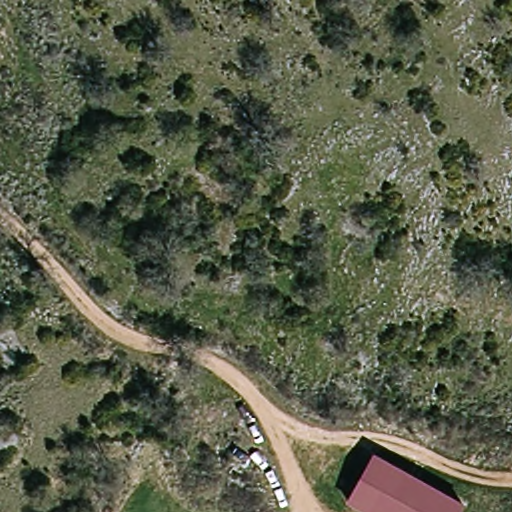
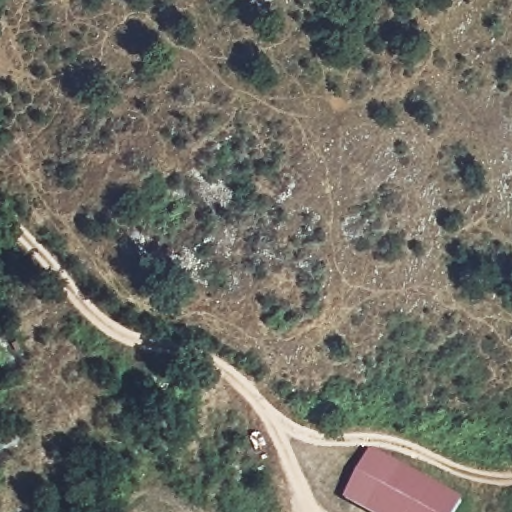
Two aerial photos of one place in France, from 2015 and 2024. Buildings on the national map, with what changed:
unchanged [(462,502),(457,512),(361,512),(345,503),(372,452),(462,502)]

